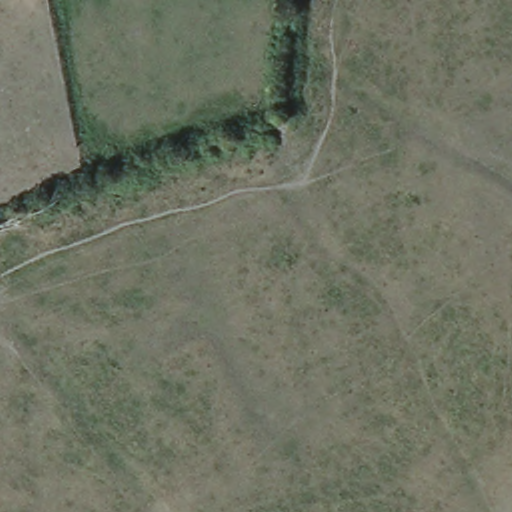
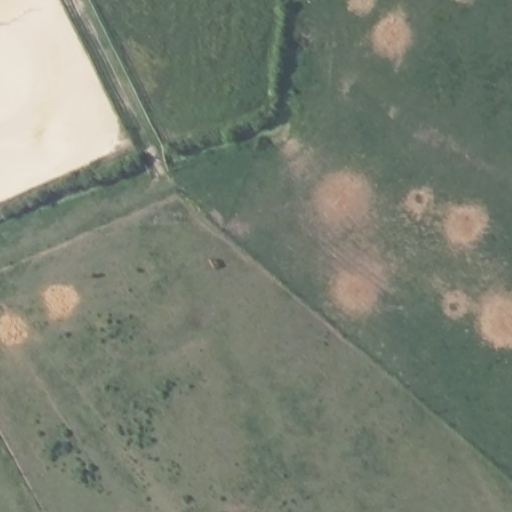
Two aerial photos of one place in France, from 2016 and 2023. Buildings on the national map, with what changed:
[]

